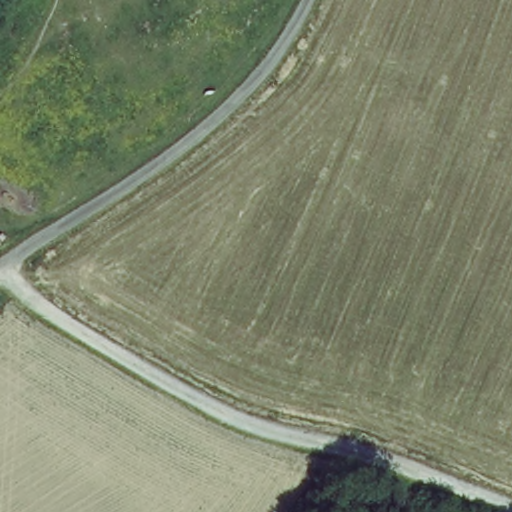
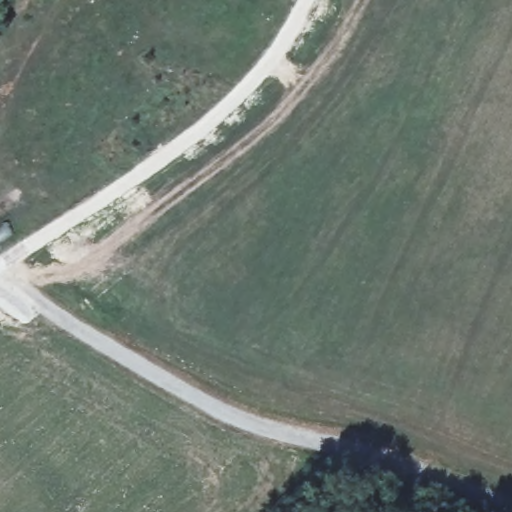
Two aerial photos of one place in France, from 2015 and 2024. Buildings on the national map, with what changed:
[]

